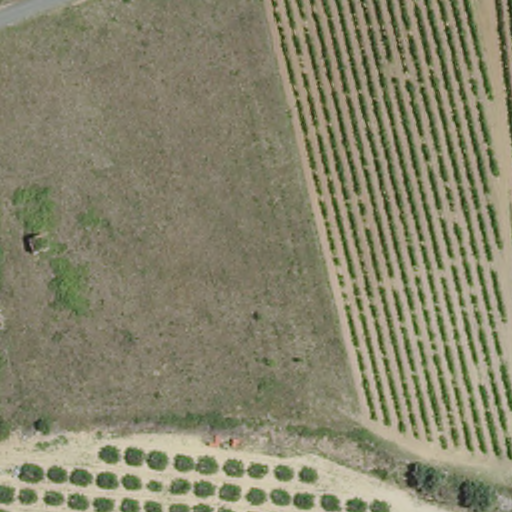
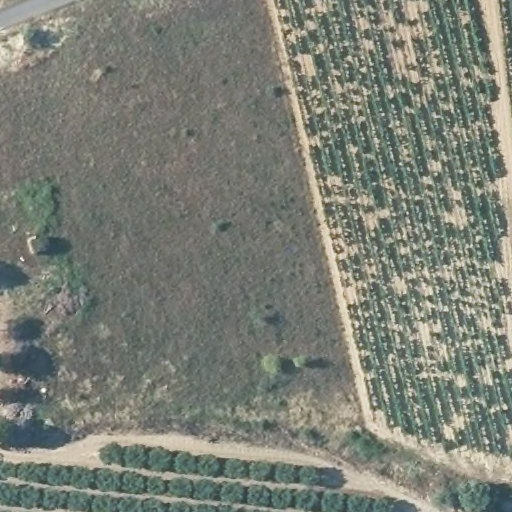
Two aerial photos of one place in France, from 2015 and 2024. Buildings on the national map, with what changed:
unchanged [(43,255),(27,259),(23,244),(40,240),(43,255)]

